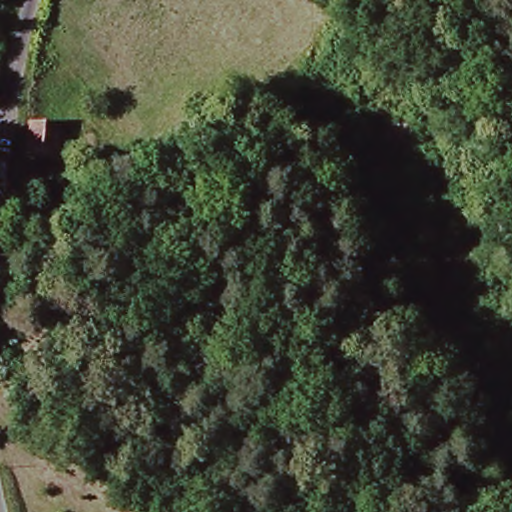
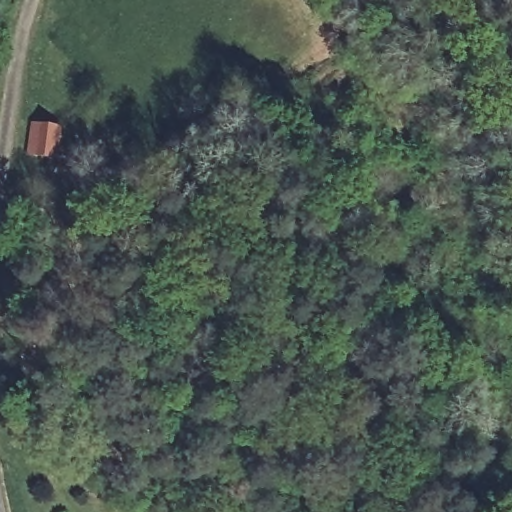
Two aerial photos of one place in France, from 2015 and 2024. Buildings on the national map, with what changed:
unchanged [(28,166),(31,132),(56,136),(54,157),(53,170),(28,166)]

